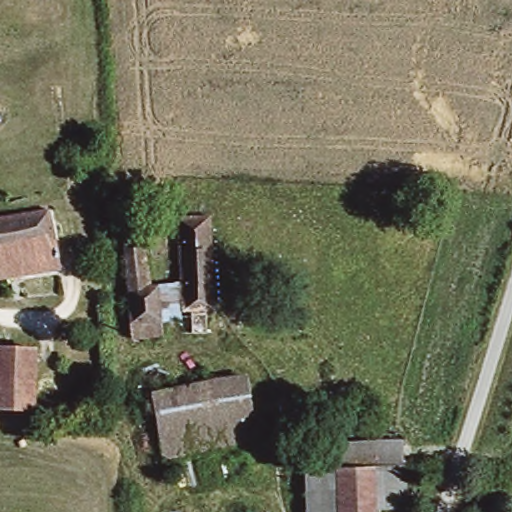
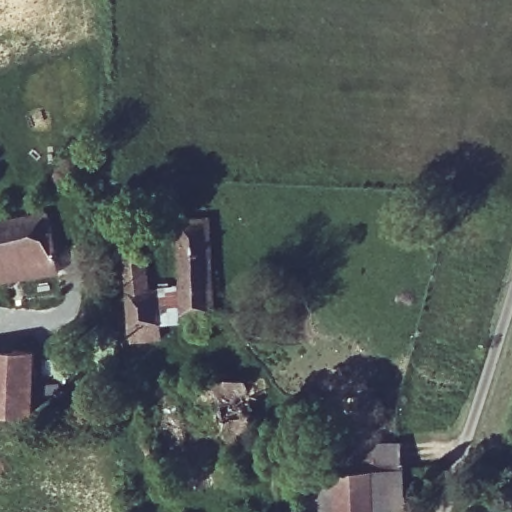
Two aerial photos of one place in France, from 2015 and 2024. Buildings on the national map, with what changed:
unchanged [(0,282),(0,223),(45,216),(55,273),(0,282)]
unchanged [(146,341),(134,341),(128,225),(145,223),(151,294),(162,293),(162,323),(162,340),(146,341)]
unchanged [(210,223),(215,315),(184,317),(178,224),(210,223)]
unchanged [(32,353),(30,414),(0,413),(0,351),(32,353)]
unchanged [(252,443),(161,459),(149,400),(240,381),(252,443)]
unchanged [(404,509),(373,509),(373,451),(373,444),(403,443),(403,457),(404,509)]
unchanged [(373,512),(310,512),(308,445),(373,444),(373,451),(373,509),(373,512)]

